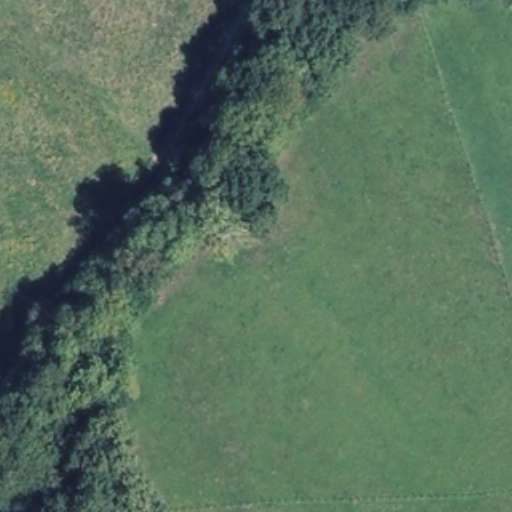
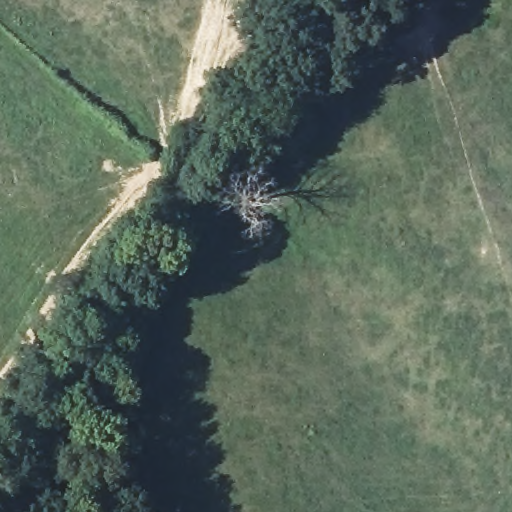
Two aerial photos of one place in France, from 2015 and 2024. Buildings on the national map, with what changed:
[]

